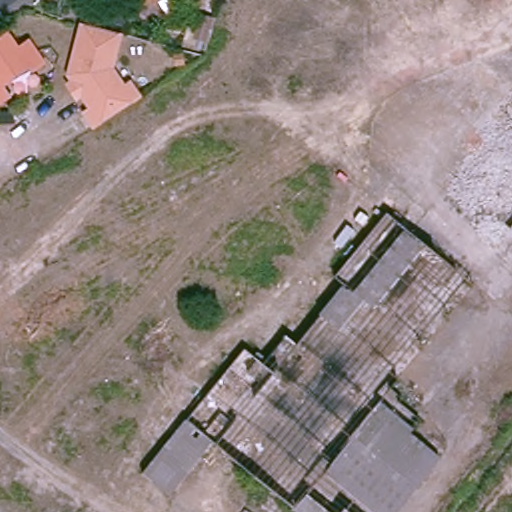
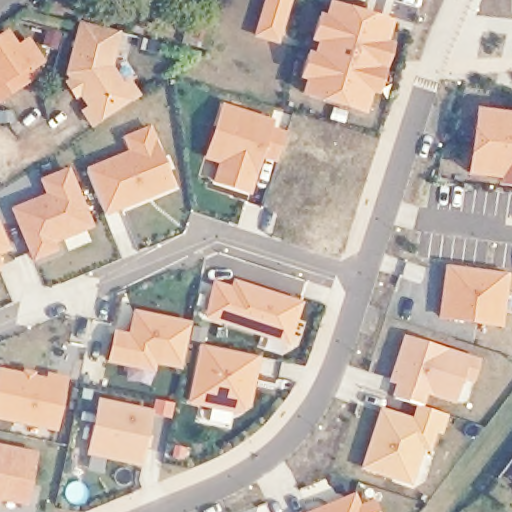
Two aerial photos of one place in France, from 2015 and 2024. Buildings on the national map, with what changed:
unchanged [(143,0),(155,0),(146,6),(143,0)]
new [(253,37),(264,0),(292,0),(279,45),(253,37)]
new [(304,83),(297,81),(305,51),(313,54),(316,45),(309,43),(317,14),(324,16),(328,1),(394,21),(387,41),(393,43),(377,96),(371,95),(366,116),(299,96),(304,83)]
unchanged [(12,79),(0,87),(0,27),(10,20),(20,35),(31,26),(45,46),(34,55),(31,51),(5,69),(12,79)]
unchanged [(63,80),(78,30),(114,40),(104,74),(116,94),(119,93),(123,90),(131,105),(94,129),(86,133),(78,118),(84,115),(74,99),(69,101),(63,91),(68,88),(63,80)]
new [(272,120),(269,128),(287,133),(279,159),(262,153),(249,190),(215,179),(222,160),(207,156),(223,104),(272,120)]
new [(512,114),(512,189),(499,188),(499,181),(466,176),(475,109),(512,114)]
new [(155,140),(172,182),(104,209),(89,166),(155,140)]
new [(44,195),(38,180),(69,168),(94,228),(54,244),(58,252),(31,263),(9,208),(44,195)]
new [(0,251),(0,225),(9,248),(0,251)]
new [(444,264),(512,274),(504,329),(437,319),(444,264)]
new [(230,286),(232,280),(303,303),(289,347),(203,320),(213,281),(230,286)]
new [(182,370),(155,365),(154,372),(105,364),(113,330),(127,334),(132,310),(190,322),(182,370)]
new [(481,359),(473,385),(462,380),(456,405),(428,397),(424,407),(448,416),(443,436),(437,434),(431,454),(422,451),(412,487),(359,470),(379,407),(412,417),(416,405),(391,397),(394,385),(388,383),(403,336),(481,359)]
new [(261,357),(251,405),(237,415),(187,404),(199,345),(261,357)]
new [(23,370),(34,373),(34,376),(45,378),(45,372),(67,377),(57,432),(0,420),(0,368),(21,373),(23,370)]
demolished [(423,414),(411,429),(436,451),(402,494),(339,442),(388,383),(423,414)]
new [(153,410),(141,467),(85,456),(97,398),(153,410)]
demolished [(177,428),(203,450),(171,489),(144,468),(177,428)]
new [(25,508),(0,503),(0,504),(0,445),(36,452),(25,508)]
new [(378,512),(306,512),(356,492),(361,504),(374,499),(378,512)]

